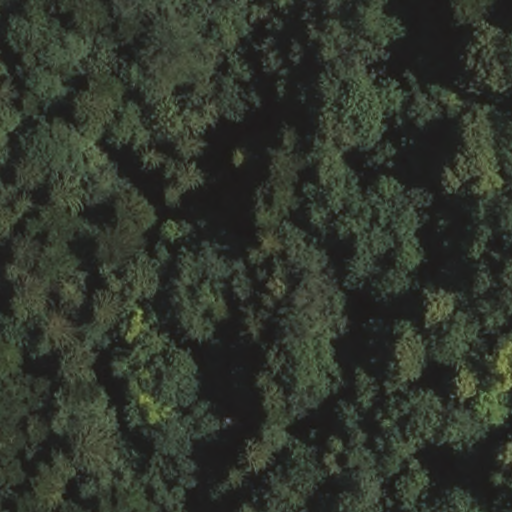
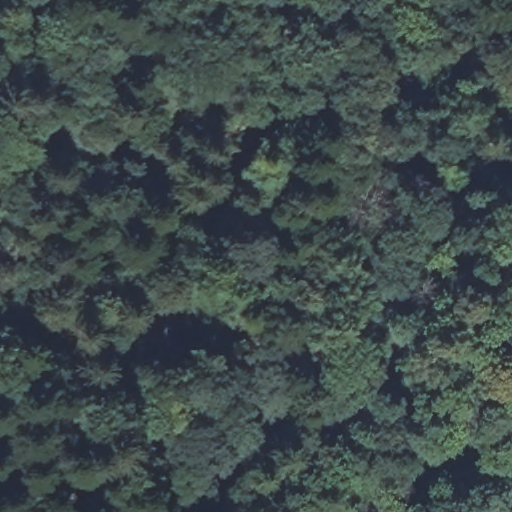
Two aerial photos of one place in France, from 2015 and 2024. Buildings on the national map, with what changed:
unchanged [(501,489),(505,469),(509,450),(512,450),(512,507),(511,512),(484,512),(488,490),(501,489)]

